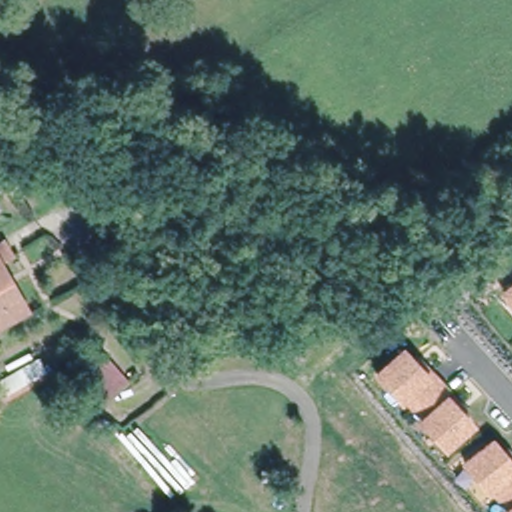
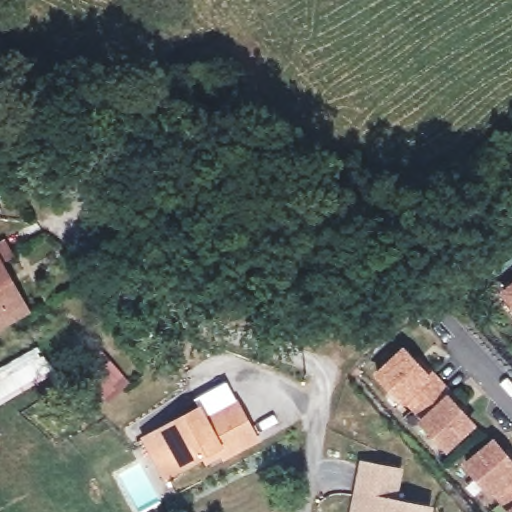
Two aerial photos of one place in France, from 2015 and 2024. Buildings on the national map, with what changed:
unchanged [(4,263),(0,265),(0,257),(4,263)]
unchanged [(2,280),(0,281),(0,277),(2,280)]
unchanged [(21,315),(0,327),(0,281),(2,280),(21,315)]
unchanged [(512,280),(512,310),(497,293),(512,280)]
unchanged [(415,358),(423,355),(465,401),(460,406),(478,424),(447,454),(369,374),(402,344),(415,358)]
unchanged [(81,381),(89,374),(82,368),(97,354),(124,385),(109,398),(96,383),(89,389),(81,381)]
new [(259,440),(208,466),(202,459),(163,481),(141,436),(202,403),(207,414),(237,397),(259,440)]
unchanged [(510,446),(512,448),(512,512),(501,512),(462,466),(493,436),(505,451),(510,446)]
new [(403,468),(398,499),(433,504),(432,512),(350,512),(360,459),(403,468)]
demolished [(330,502),(320,494),(330,480),(341,489),(370,512),(322,512),(330,502)]

